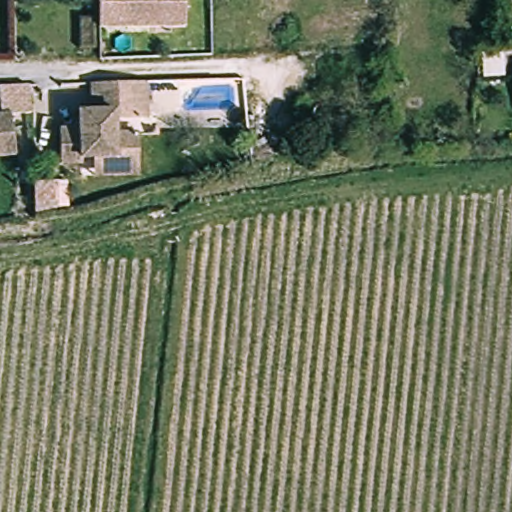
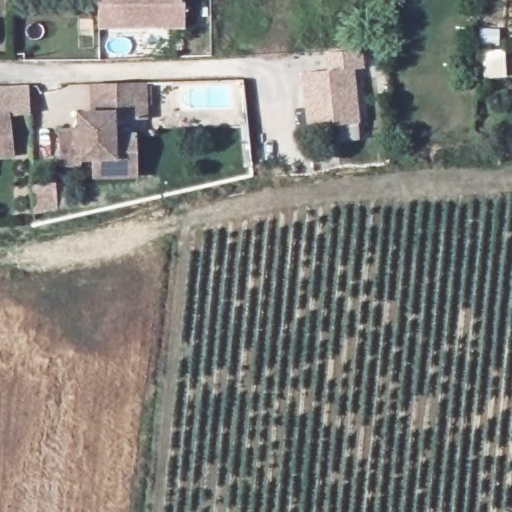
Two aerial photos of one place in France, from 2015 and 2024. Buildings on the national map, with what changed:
unchanged [(97,27),(97,0),(184,0),(185,26),(97,27)]
new [(328,69),(326,51),(360,49),(362,67),(353,69),(357,121),(307,126),(303,71),(328,69)]
new [(505,77),(482,79),(482,50),(504,49),(505,77)]
unchanged [(89,84),(116,83),(145,82),(146,91),(158,91),(159,107),(146,108),(146,121),(122,121),(122,132),(76,132),(76,114),(90,113),(89,84)]
unchanged [(12,117),(13,137),(0,137),(0,118),(12,117)]
unchanged [(90,176),(89,156),(77,157),(78,166),(60,166),(60,132),(76,132),(122,132),(138,132),(139,163),(139,175),(90,176)]
unchanged [(15,157),(0,158),(0,137),(13,137),(15,157)]
unchanged [(49,182),(50,215),(28,218),(27,184),(49,182)]

